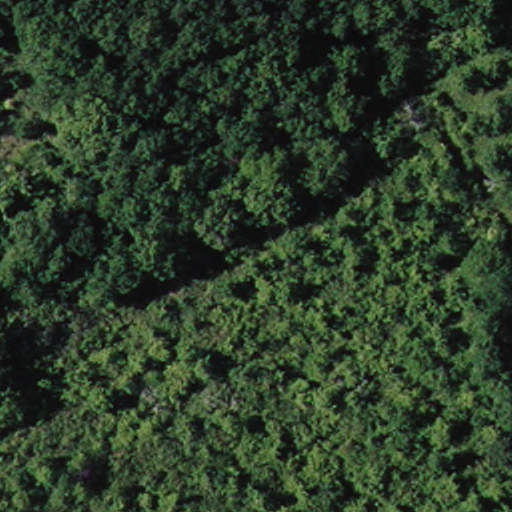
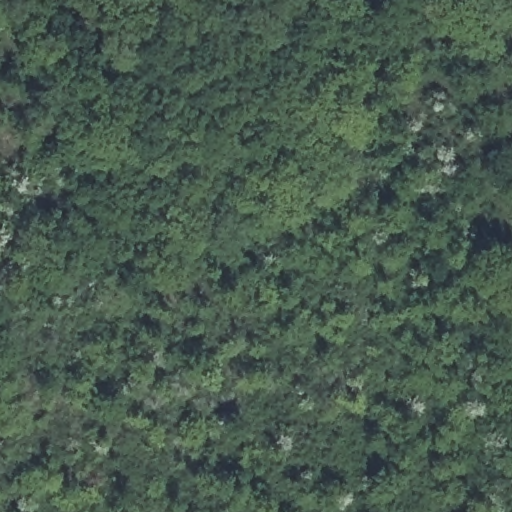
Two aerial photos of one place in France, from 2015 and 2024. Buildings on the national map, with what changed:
[]

